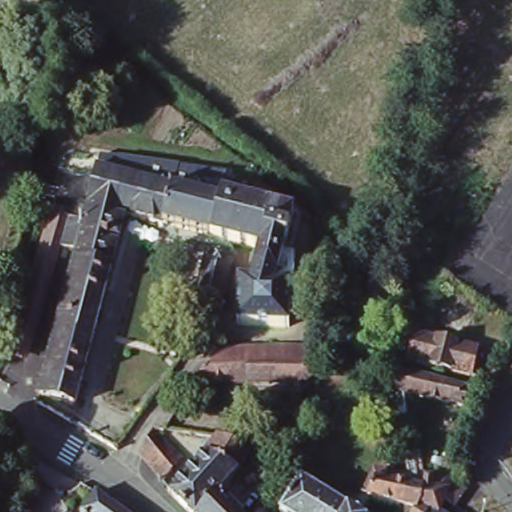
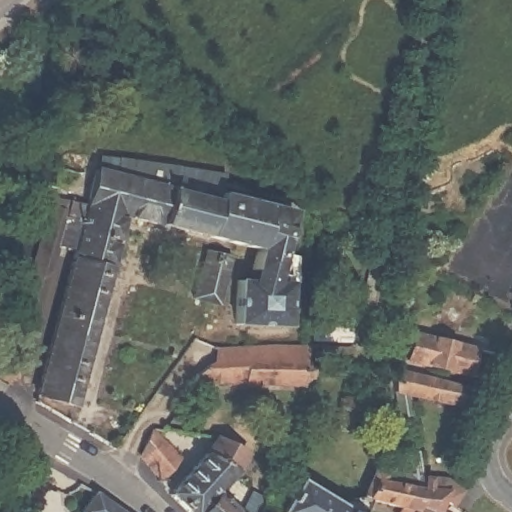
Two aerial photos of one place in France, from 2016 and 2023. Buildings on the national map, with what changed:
unchanged [(80,233),(65,229),(61,227),(61,230),(50,227),(55,212),(53,212),(56,201),(70,205),(71,203),(86,207),(100,158),(185,172),(221,177),(216,192),(287,211),(271,273),(290,276),(287,318),(235,317),(236,271),(244,272),(253,241),(234,236),(232,244),(125,215),(75,407),(38,397),(80,233)]
unchanged [(50,227),(61,230),(61,227),(65,229),(26,360),(15,357),(50,227)]
unchanged [(225,250),(217,297),(201,296),(209,247),(225,250)]
unchanged [(346,336),(345,354),(301,352),(302,333),(346,336)]
unchanged [(412,337),(477,351),(468,378),(464,377),(447,373),(405,363),(412,337)]
unchanged [(216,343),(298,346),(297,356),(267,355),(250,356),(216,357),(216,343)]
unchanged [(236,391),(180,387),(205,368),(235,367),(244,366),(271,365),(299,365),(288,393),(236,391)]
unchanged [(387,376),(386,367),(461,386),(457,404),(402,392),(406,416),(391,417),(388,387),(387,376)]
unchanged [(160,432),(157,439),(182,461),(162,485),(141,462),(155,428),(160,432)]
unchanged [(172,491),(210,447),(217,436),(231,444),(245,452),(237,467),(210,487),(192,512),(188,512),(170,493),(172,491)]
unchanged [(396,511),(361,503),(375,477),(403,480),(400,457),(415,457),(419,482),(440,486),(452,492),(462,497),(455,512),(446,507),(443,512),(396,512),(396,511)]
unchanged [(357,512),(284,512),(280,510),(303,477),(357,512)]
unchanged [(210,487),(237,512),(192,512),(210,487)]
unchanged [(117,512),(84,512),(95,497),(117,512)]

